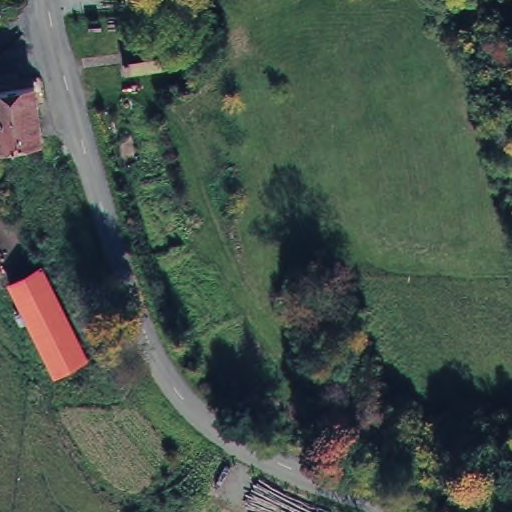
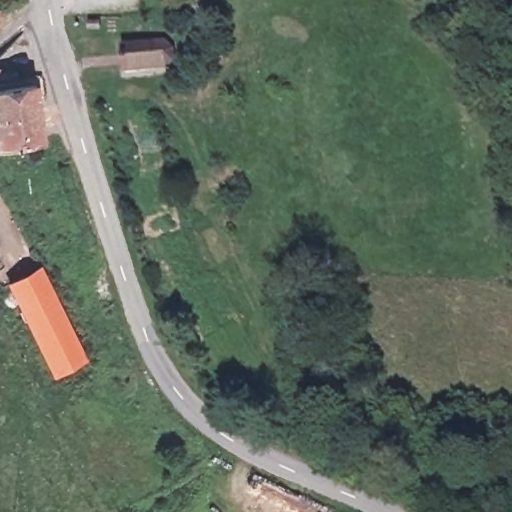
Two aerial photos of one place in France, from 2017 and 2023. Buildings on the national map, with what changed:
unchanged [(0,11),(2,11),(0,25),(0,11)]
unchanged [(125,69),(122,42),(157,38),(175,41),(177,54),(169,64),(125,69)]
unchanged [(35,139),(30,138),(0,141),(0,83),(32,81),(35,139)]
unchanged [(83,350),(57,367),(4,280),(30,264),(83,350)]

